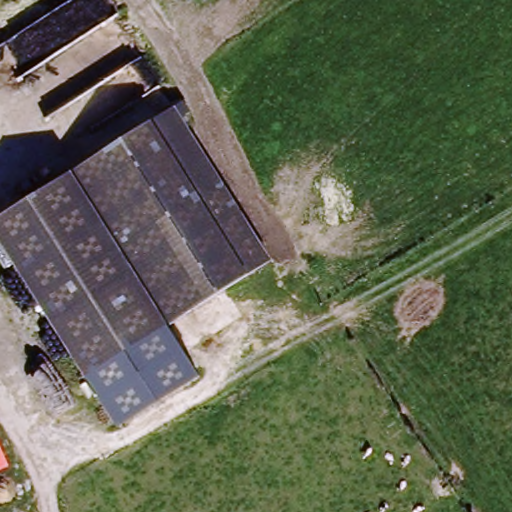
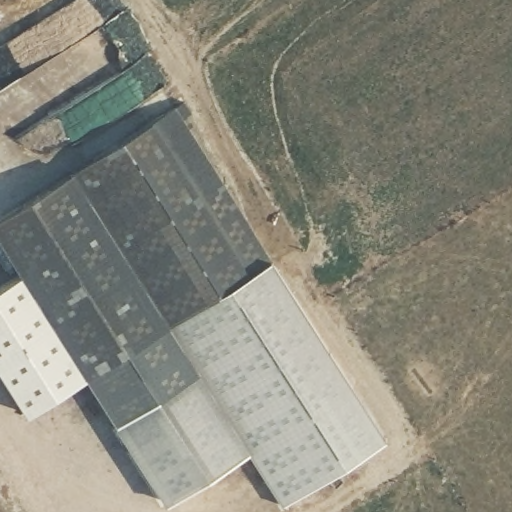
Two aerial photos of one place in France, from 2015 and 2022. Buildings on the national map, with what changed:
unchanged [(171,105),(269,262),(83,376),(0,243),(0,213),(171,105)]
new [(273,259),(386,438),(283,502),(250,452),(168,505),(88,373),(269,262),(273,259)]

